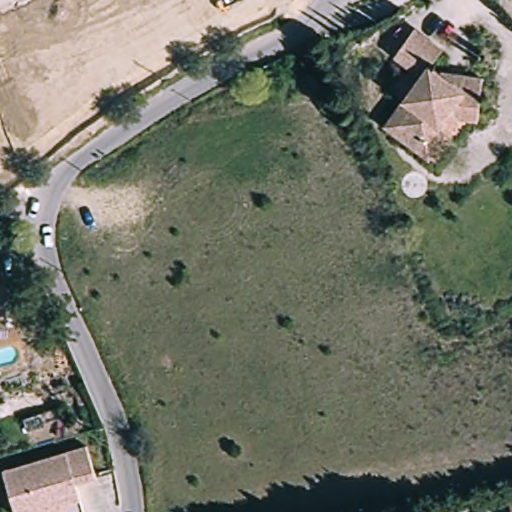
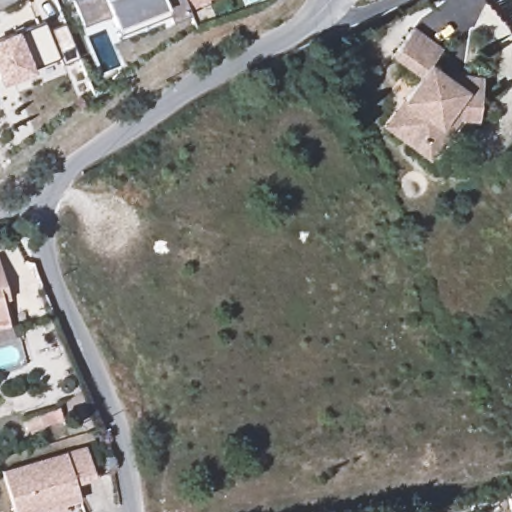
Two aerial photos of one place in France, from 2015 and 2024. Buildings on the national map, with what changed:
new [(82,0),(197,0),(184,5),(186,14),(170,22),(164,10),(116,27),(109,12),(82,25),(73,3),(82,0)]
new [(0,82),(0,38),(15,32),(43,22),(47,31),(62,23),(77,58),(61,63),(57,57),(30,68),(32,72),(1,84),(0,82)]
unchanged [(382,123),(402,95),(420,71),(393,51),(412,25),(441,46),(429,62),(437,67),(465,71),(482,73),(477,115),(457,113),(433,146),(427,155),(382,123)]
unchanged [(280,57),(289,76),(263,89),(253,70),(280,57)]
unchanged [(2,257),(11,289),(13,299),(7,301),(12,320),(10,320),(13,328),(0,332),(0,258),(2,257)]
unchanged [(59,407),(62,418),(43,424),(26,432),(22,419),(40,413),(59,407)]
unchanged [(0,488),(0,475),(81,451),(90,483),(70,489),(75,505),(58,510),(59,512),(7,512),(0,488)]
unchanged [(512,498),(512,512),(510,512),(507,498),(512,498)]

